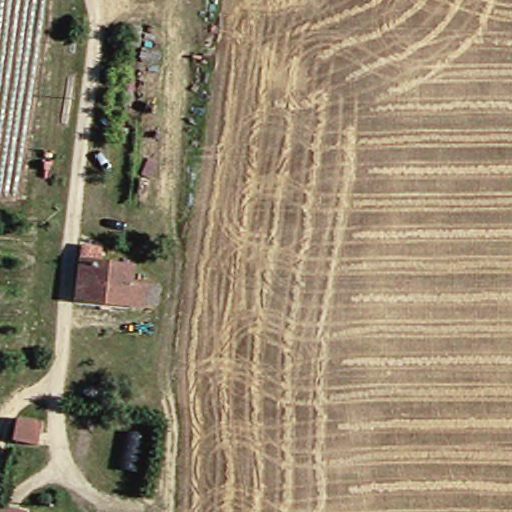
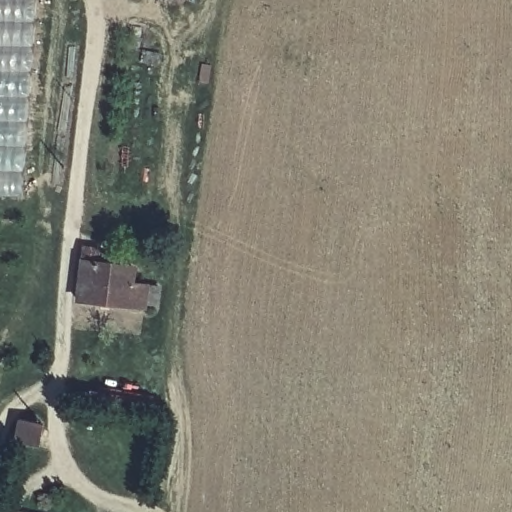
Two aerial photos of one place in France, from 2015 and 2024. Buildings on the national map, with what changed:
new [(23,196),(0,195),(0,0),(36,0),(23,196)]
unchanged [(130,282),(146,285),(142,309),(76,301),(81,260),(131,266),(130,282)]
unchanged [(38,461),(27,459),(11,456),(19,417),(33,418),(44,419),(38,461)]

